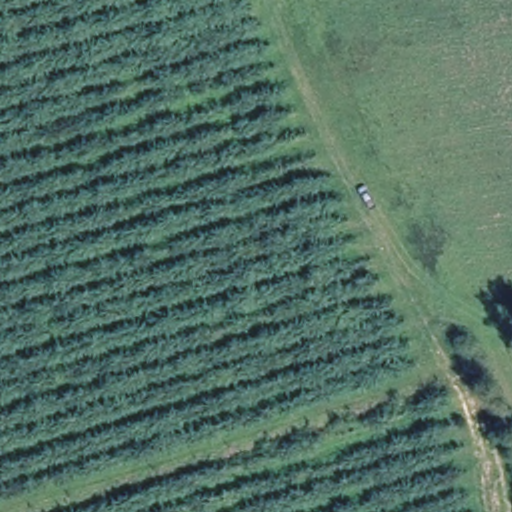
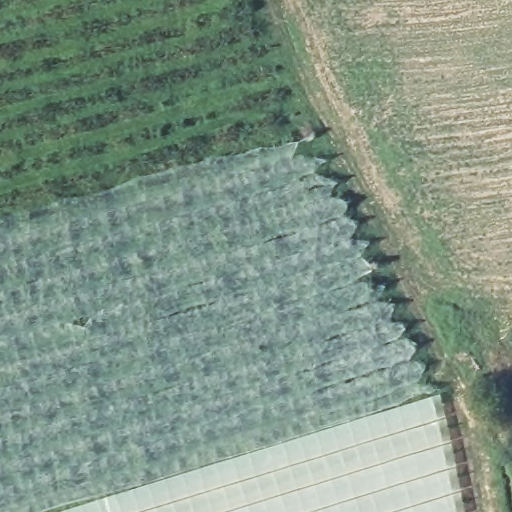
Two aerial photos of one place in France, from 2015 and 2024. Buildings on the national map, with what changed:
new [(463,512),(36,512),(438,389),(463,512)]

